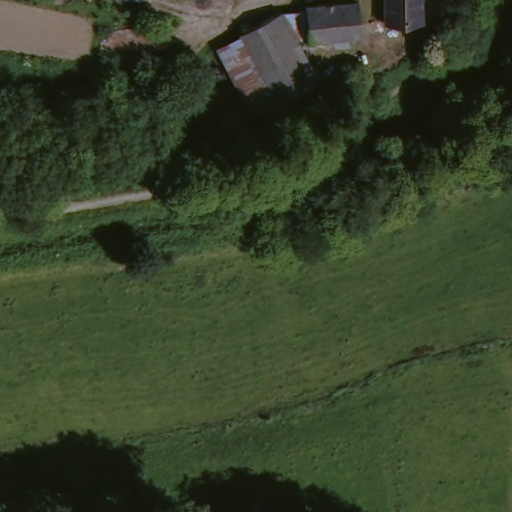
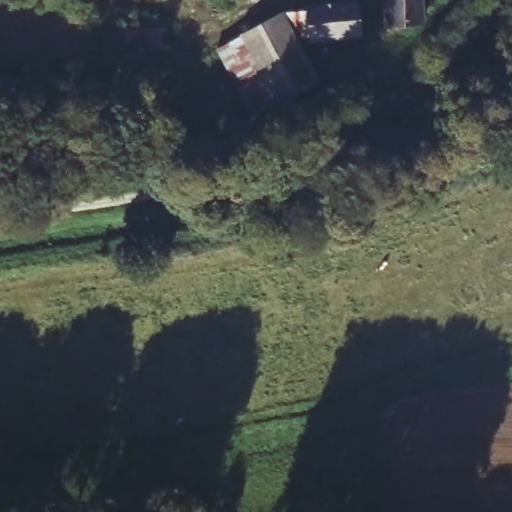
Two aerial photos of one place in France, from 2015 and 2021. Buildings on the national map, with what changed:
unchanged [(292,12),(310,12),(312,5),(342,4),(343,0),(366,0),(366,38),(307,43),(292,12)]
unchanged [(422,27),(389,20),(392,0),(428,0),(422,27)]
unchanged [(292,12),(307,43),(323,77),(257,107),(229,46),(281,11),(289,6),(292,12)]

